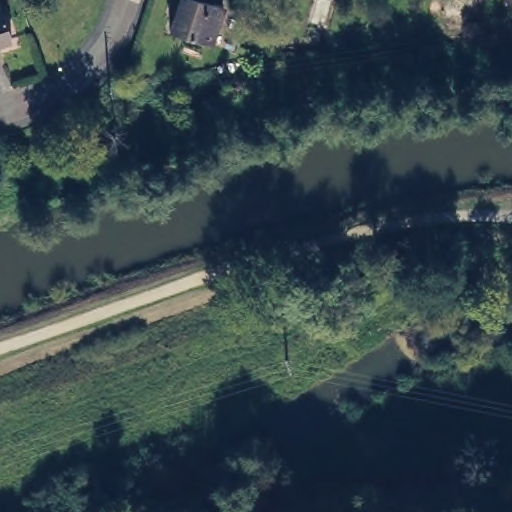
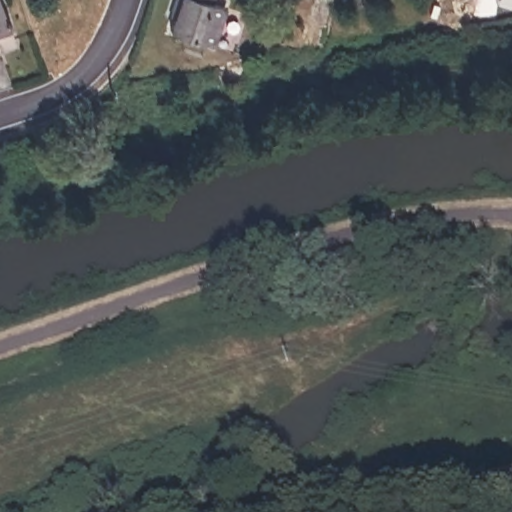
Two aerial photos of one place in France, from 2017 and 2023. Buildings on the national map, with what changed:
unchanged [(1,0),(13,34),(0,38),(0,0),(1,0)]
unchanged [(171,11),(175,0),(212,0),(211,3),(223,7),(211,45),(170,31),(176,12),(171,11)]

